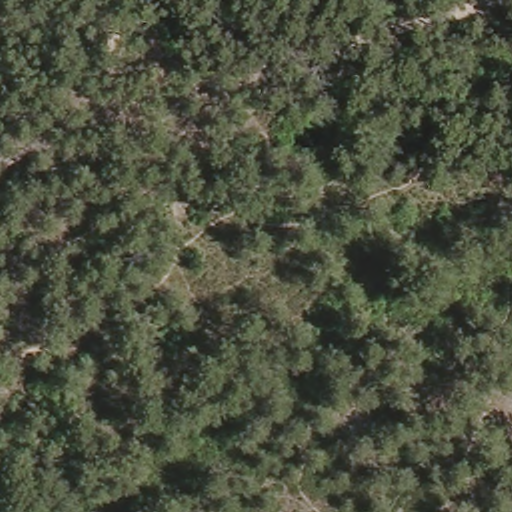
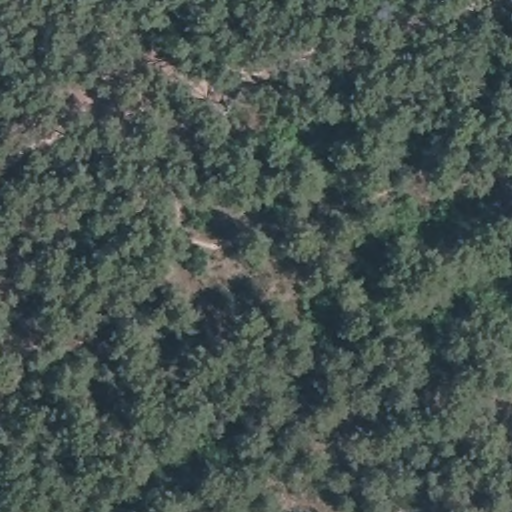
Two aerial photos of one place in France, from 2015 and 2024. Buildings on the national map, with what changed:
[]

